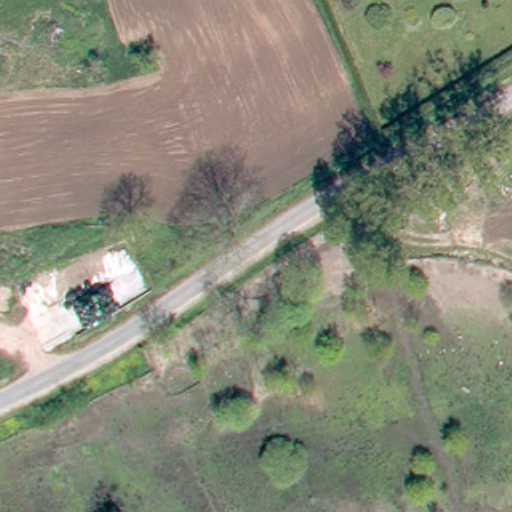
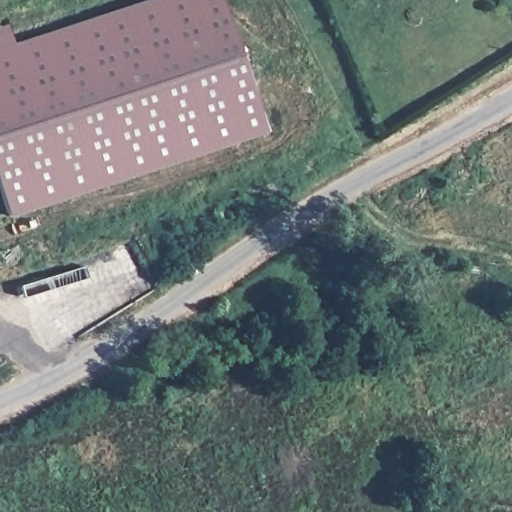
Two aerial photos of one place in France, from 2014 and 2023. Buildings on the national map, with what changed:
new [(7,218),(0,196),(0,48),(150,0),(221,0),(266,133),(7,218)]
demolished [(120,275),(126,273),(137,303),(62,332),(52,300),(120,275)]

